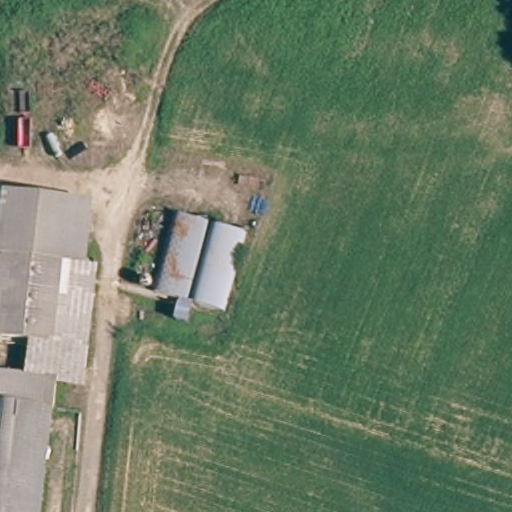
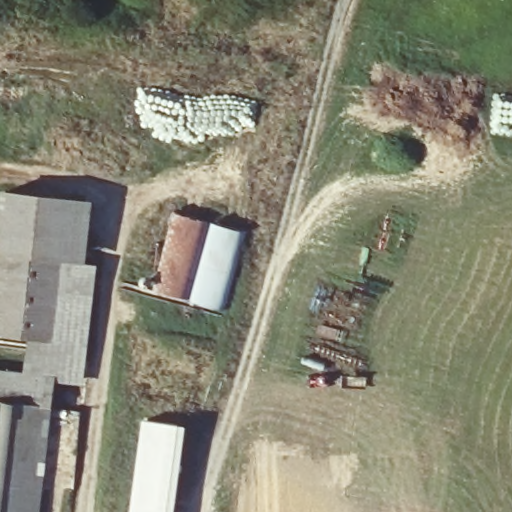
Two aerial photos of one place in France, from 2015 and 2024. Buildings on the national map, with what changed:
unchanged [(74,260),(59,258),(51,336),(0,332),(0,264),(6,191),(79,198),(74,260)]
unchanged [(243,230),(221,309),(155,291),(173,212),(243,230)]
unchanged [(30,334),(51,336),(59,258),(74,260),(97,262),(85,383),(48,380),(23,378),(30,334)]
unchanged [(36,512),(0,512),(0,376),(48,380),(36,512)]
new [(143,418),(188,424),(176,512),(128,512),(130,497),(143,418)]

